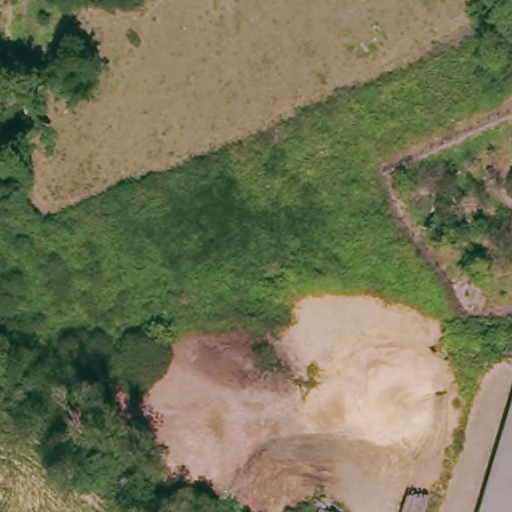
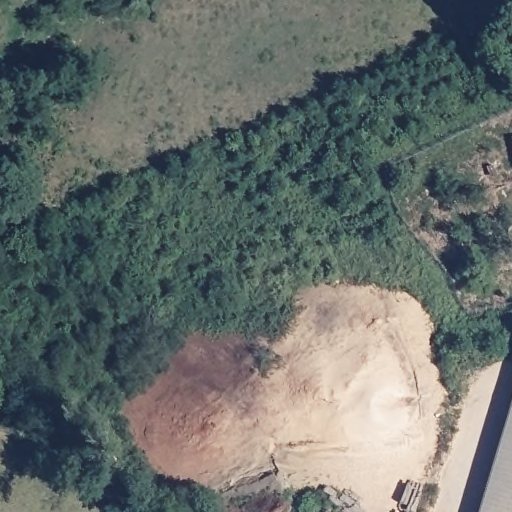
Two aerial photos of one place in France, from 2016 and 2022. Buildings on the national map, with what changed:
unchanged [(512,482),(512,512),(503,512),(512,482)]

